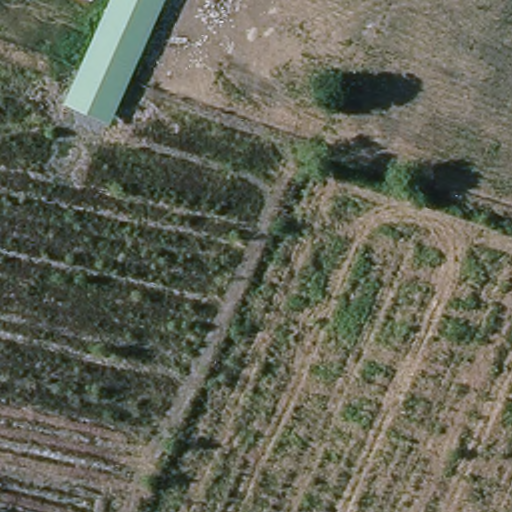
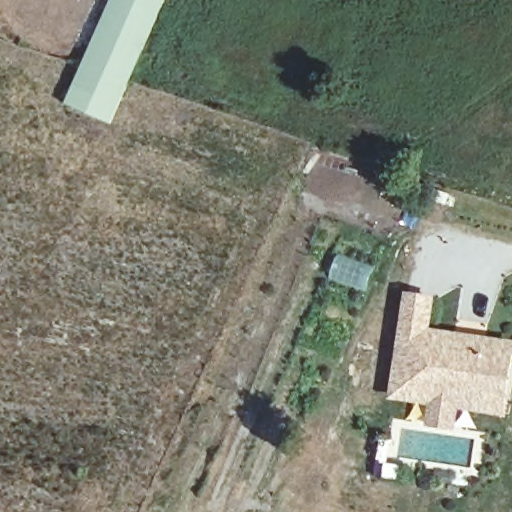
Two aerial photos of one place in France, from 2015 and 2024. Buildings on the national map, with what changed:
unchanged [(66,105),(111,0),(167,0),(112,127),(66,105)]
new [(435,400),(394,395),(395,386),(410,290),(432,294),(427,327),(480,335),(512,340),(512,361),(505,411),(457,404),(454,425),(431,422),(435,400)]

